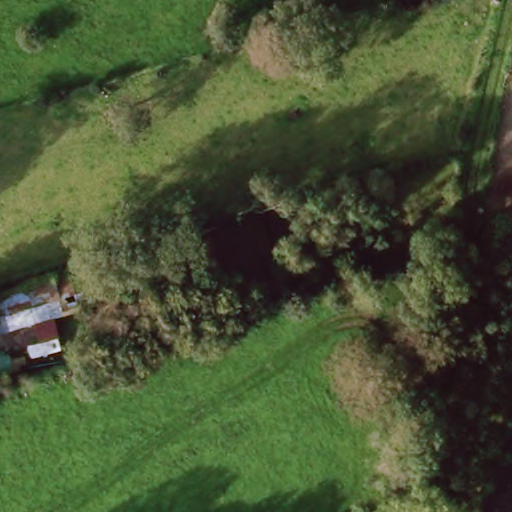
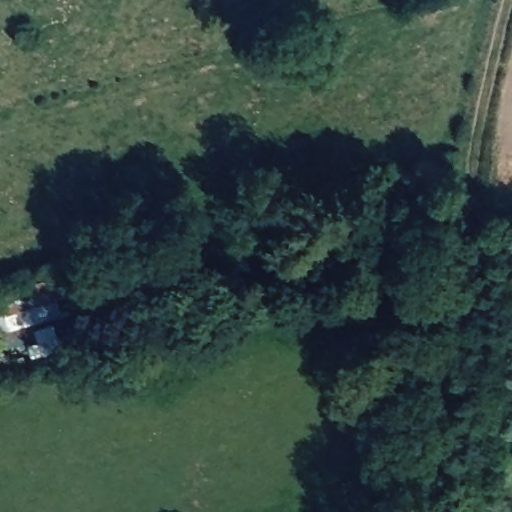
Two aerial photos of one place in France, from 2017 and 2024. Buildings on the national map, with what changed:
unchanged [(70,272),(77,293),(8,315),(0,293),(70,272)]

